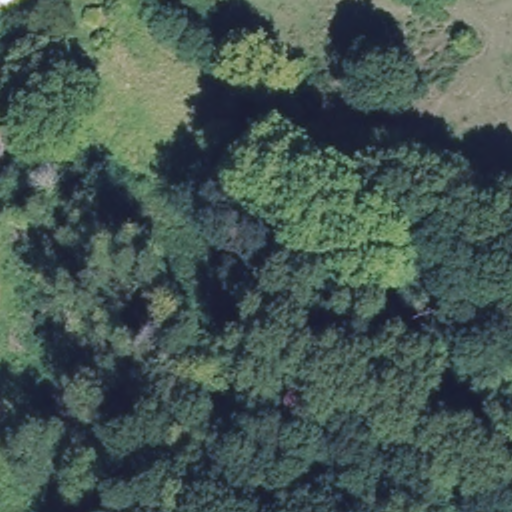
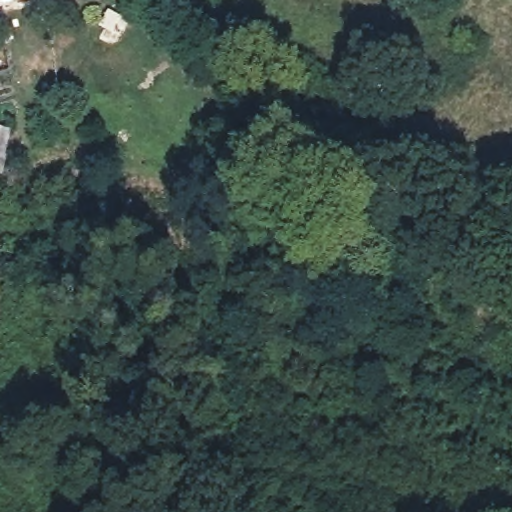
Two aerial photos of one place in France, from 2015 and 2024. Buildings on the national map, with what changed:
unchanged [(5,132),(0,145),(0,130),(5,132)]
unchanged [(3,155),(0,162),(0,154),(3,155)]

